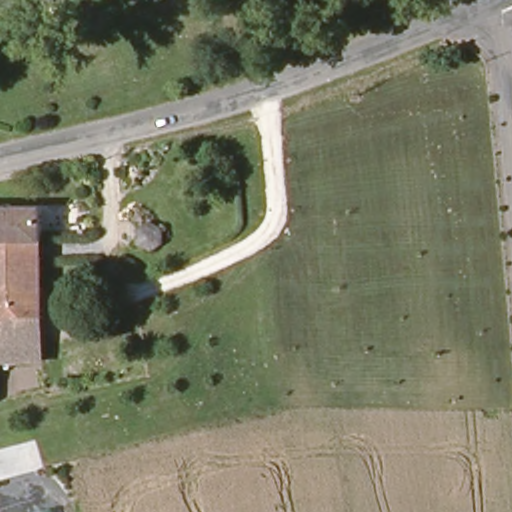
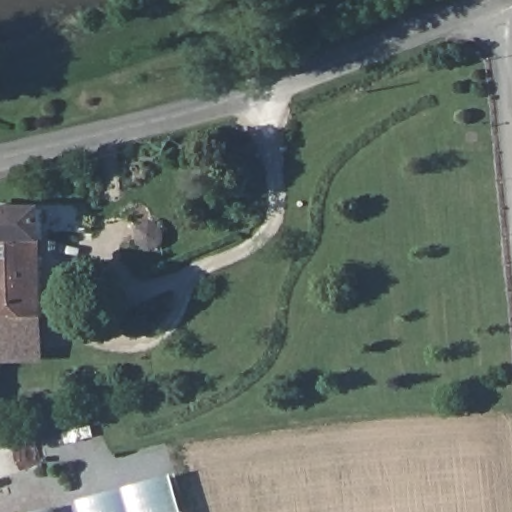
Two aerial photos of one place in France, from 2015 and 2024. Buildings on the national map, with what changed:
unchanged [(42,241),(0,240),(0,213),(41,214),(42,241)]
unchanged [(46,363),(0,365),(0,240),(42,241),(46,363)]
new [(187,512),(87,512),(84,503),(177,477),(187,512)]
new [(56,512),(40,512),(54,508),(56,512)]

